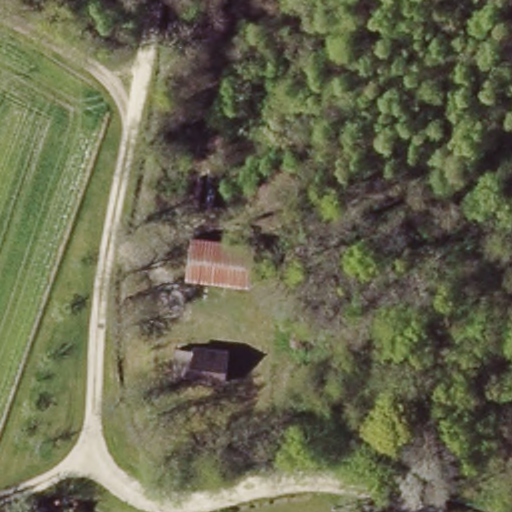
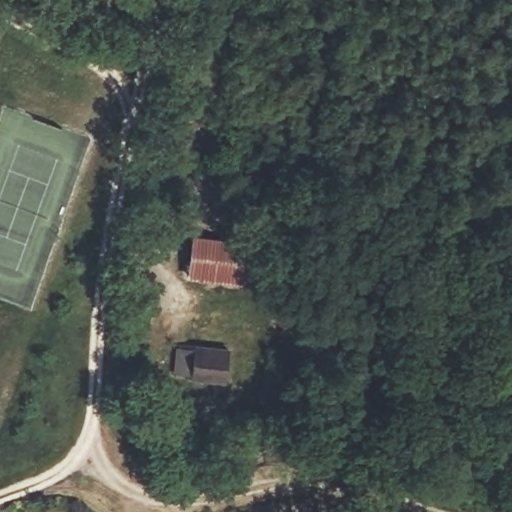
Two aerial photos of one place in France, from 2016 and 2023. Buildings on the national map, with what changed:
unchanged [(192,234),(257,243),(251,289),(187,281),(192,234)]
unchanged [(167,380),(170,344),(230,347),(225,384),(167,380)]

